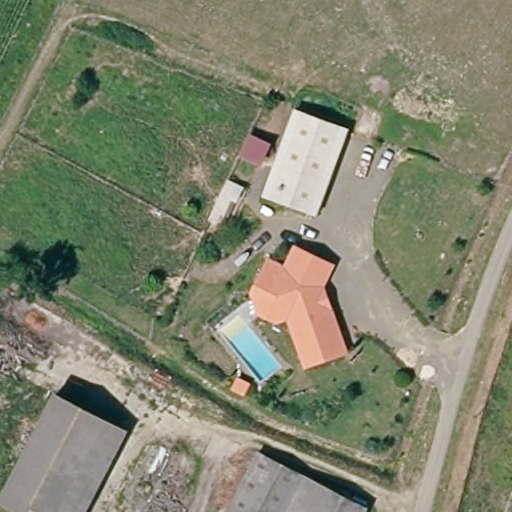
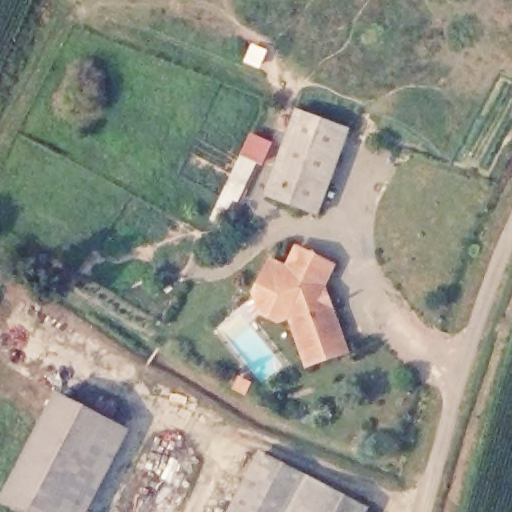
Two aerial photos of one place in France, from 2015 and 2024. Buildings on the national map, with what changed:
unchanged [(348,130),(316,215),(264,195),(296,110),(348,130)]
unchanged [(242,188),(238,198),(224,192),(228,182),(242,188)]
unchanged [(287,269),(296,249),(332,266),(323,286),(346,352),(307,366),(290,318),(276,321),(261,313),(253,294),(269,261),(287,269)]
unchanged [(120,428),(78,512),(20,512),(10,507),(66,400),(120,428)]
unchanged [(366,510),(366,512),(230,512),(260,454),(366,510)]

